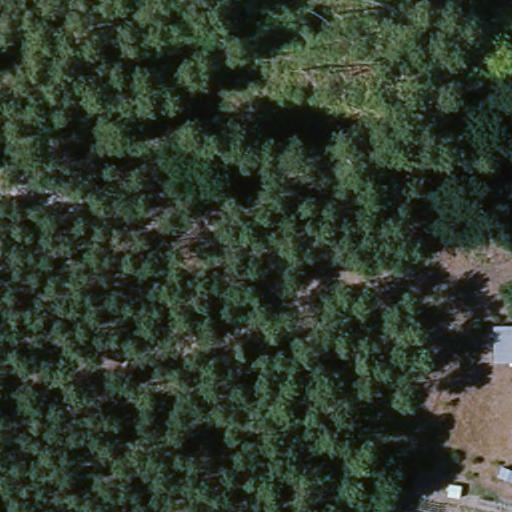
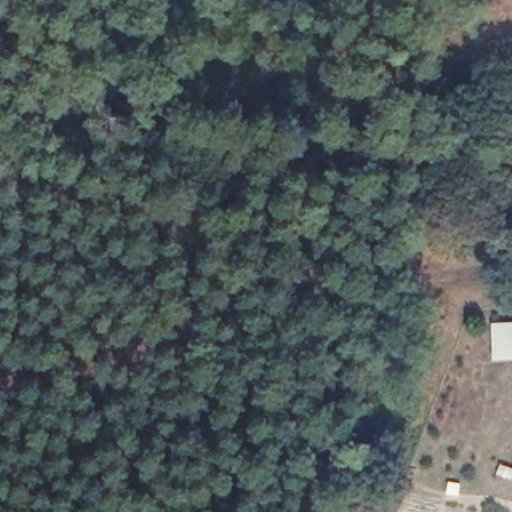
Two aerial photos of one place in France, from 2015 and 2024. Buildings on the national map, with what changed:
unchanged [(491,364),(493,325),(512,320),(512,363),(491,364)]

